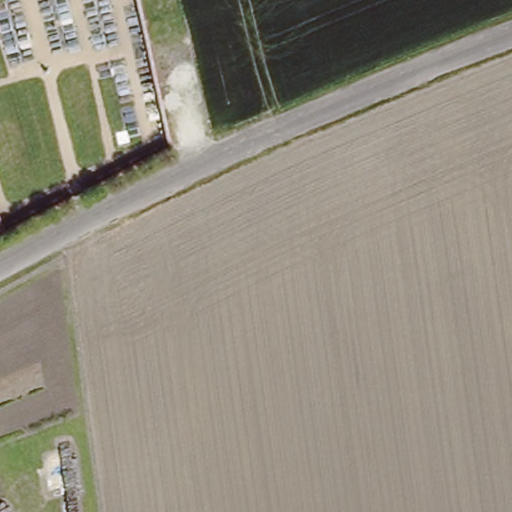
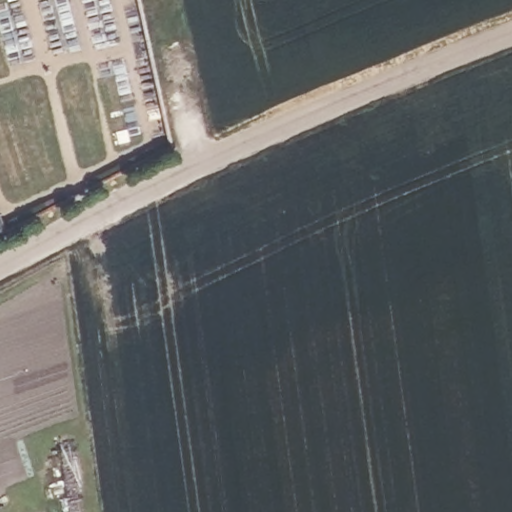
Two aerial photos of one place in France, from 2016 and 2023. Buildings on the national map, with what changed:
unchanged [(2,215),(8,236),(0,240),(0,216),(2,215)]

